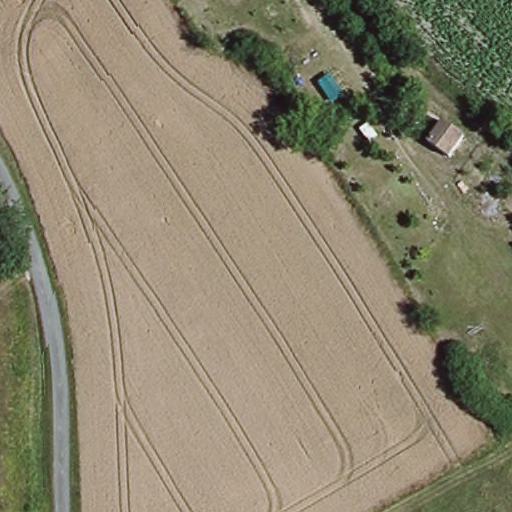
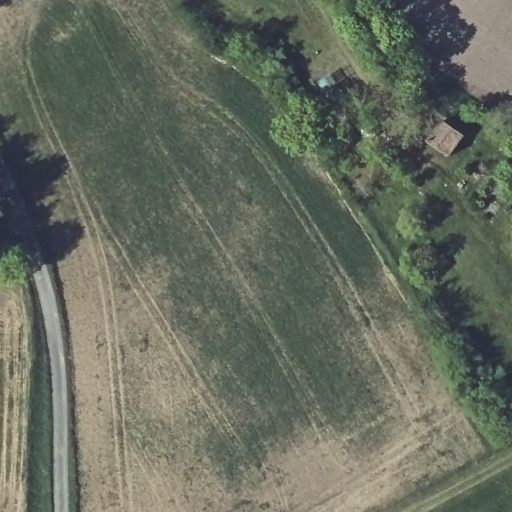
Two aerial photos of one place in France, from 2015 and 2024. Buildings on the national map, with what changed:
unchanged [(464,129),(453,151),(431,139),(443,118),(464,129)]

